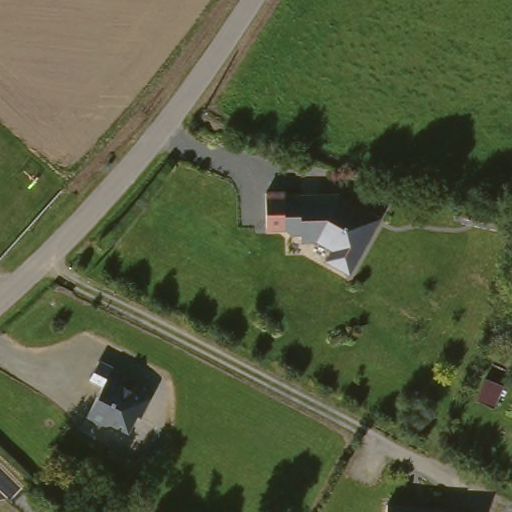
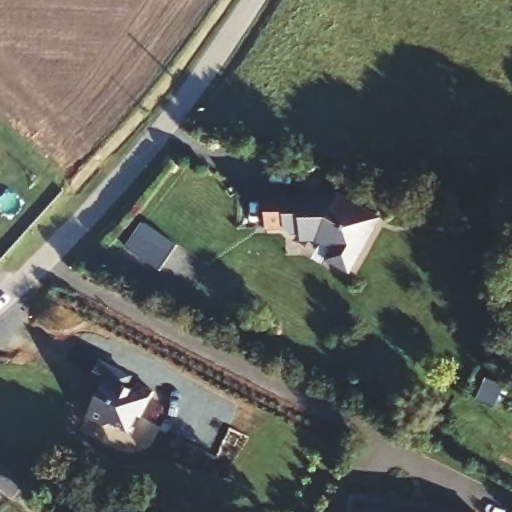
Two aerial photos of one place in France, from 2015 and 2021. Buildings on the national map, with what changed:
unchanged [(354,270),(333,257),(339,246),(323,237),(306,237),(306,230),(296,230),(291,225),(272,225),(272,190),(291,190),(291,193),(311,193),(311,196),(326,196),(326,193),(344,193),(386,216),(354,270)]
new [(126,249),(143,221),(178,245),(159,271),(126,249)]
unchanged [(149,413),(145,411),(136,427),(120,419),(111,422),(95,414),(111,382),(99,376),(108,357),(139,373),(134,382),(142,387),(146,381),(161,388),(149,413)]
unchanged [(483,512),(394,512),(396,497),(484,506),(483,512)]

